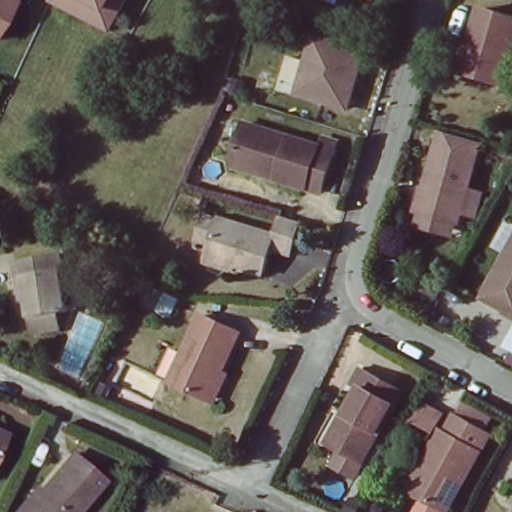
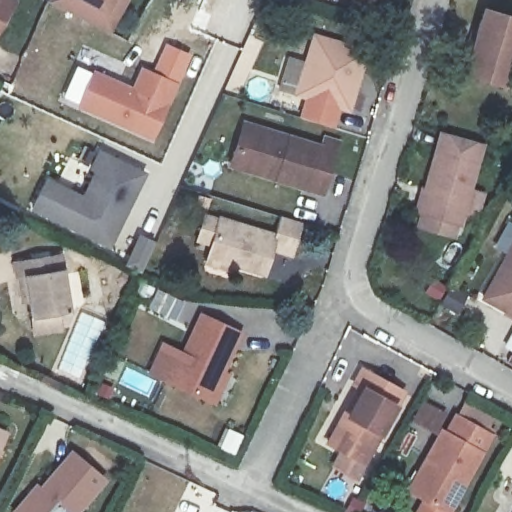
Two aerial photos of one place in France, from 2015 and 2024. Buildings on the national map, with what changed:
unchanged [(19,3),(0,34),(0,0),(13,0),(19,3)]
unchanged [(110,30),(50,0),(126,0),(110,30)]
unchanged [(477,30),(483,8),(512,17),(512,57),(504,84),(465,72),(458,70),(470,28),(477,30)]
unchanged [(370,50),(351,108),(301,92),(321,35),(370,50)]
new [(176,82),(151,72),(164,43),(190,53),(176,82)]
new [(132,86),(140,67),(176,82),(152,141),(76,108),(93,70),(132,86)]
unchanged [(234,159),(246,121),(340,149),(327,193),(277,178),(233,165),(234,159)]
unchanged [(493,139),(468,220),(427,207),(452,126),(493,139)]
new [(98,149),(147,171),(108,250),(30,210),(45,178),(83,194),(92,172),(89,170),(98,149)]
unchanged [(201,261),(203,254),(216,213),(275,231),(280,213),(299,219),(289,253),(270,247),(262,271),(232,263),(230,270),(201,261)]
new [(143,236),(157,243),(145,272),(131,266),(143,236)]
unchanged [(498,267),(512,242),(512,318),(480,300),(498,267)]
unchanged [(35,336),(31,318),(29,303),(23,304),(15,264),(61,257),(70,312),(60,314),(63,331),(35,336)]
unchanged [(217,399),(211,395),(170,376),(202,310),(243,329),(225,365),(232,369),(217,399)]
unchanged [(342,413),(358,384),(351,380),(359,366),(398,386),(360,457),(334,442),(328,439),(342,413)]
new [(417,399),(440,411),(431,429),(407,417),(417,399)]
unchanged [(419,460),(438,425),(441,427),(450,412),(489,434),(446,511),(411,491),(404,487),(419,460)]
unchanged [(3,432),(0,437),(0,431),(3,432)]
unchanged [(69,451),(98,476),(103,480),(85,500),(75,512),(15,512),(12,509),(33,483),(39,488),(69,451)]

